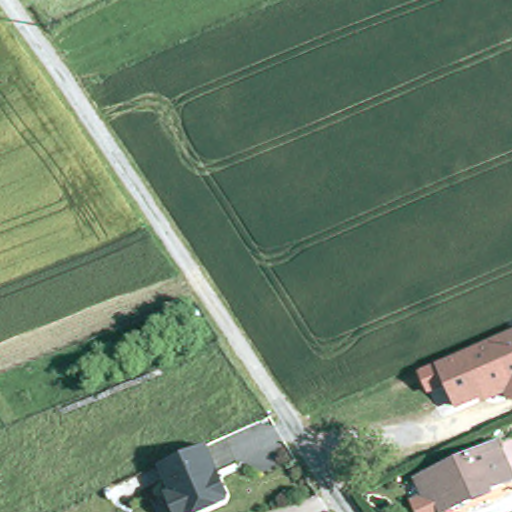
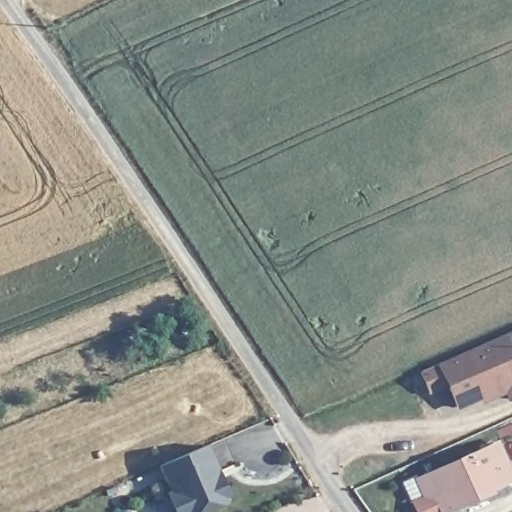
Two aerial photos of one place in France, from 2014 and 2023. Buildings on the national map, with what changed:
unchanged [(512,332),(512,399),(511,399),(506,392),(457,411),(438,363),(512,332)]
unchanged [(432,494),(423,474),(502,438),(512,460),(512,477),(491,487),(491,489),(448,508),(440,511),(432,494)]
unchanged [(230,499),(199,512),(175,512),(160,466),(208,448),(230,499)]

